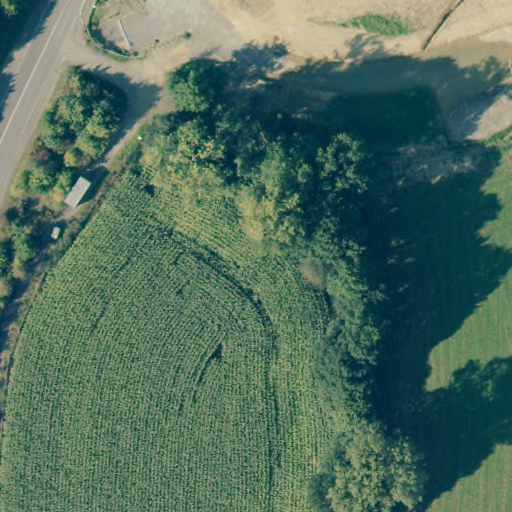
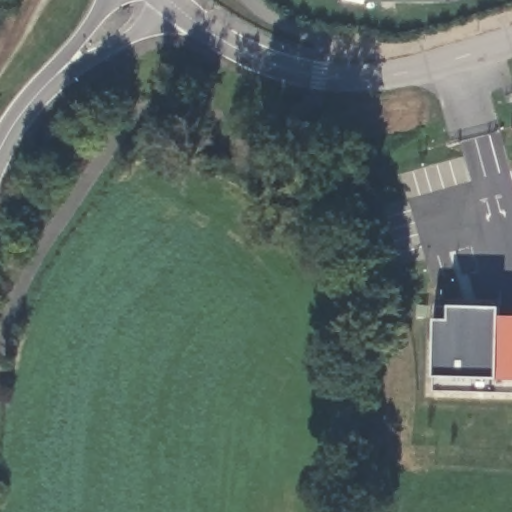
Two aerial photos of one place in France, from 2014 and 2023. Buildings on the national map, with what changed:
new [(368,3),(368,0),(447,0),(447,3),(368,3)]
new [(433,377),(433,321),(449,322),(449,307),(498,310),(499,317),(512,318),(512,395),(434,393),(433,377)]

